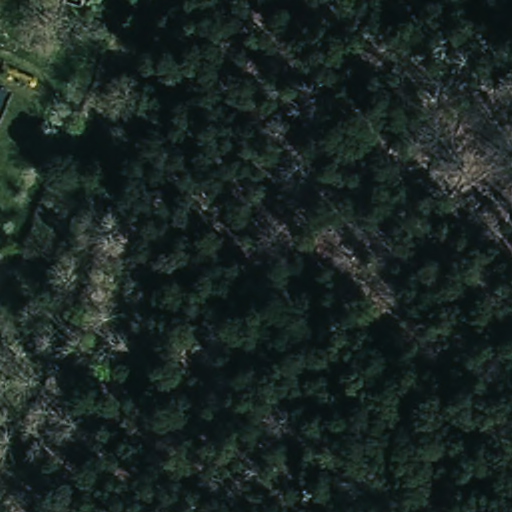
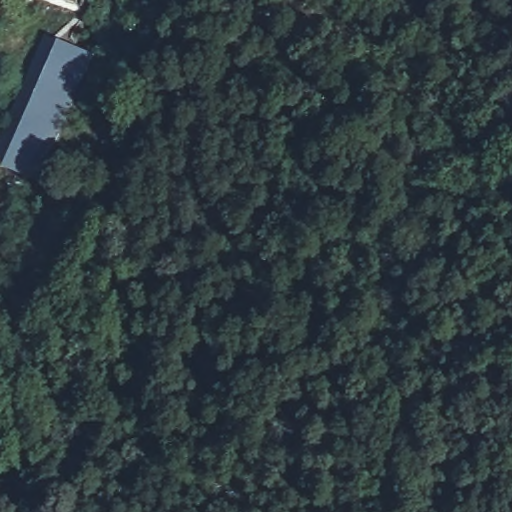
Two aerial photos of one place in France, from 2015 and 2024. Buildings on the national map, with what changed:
new [(0,162),(0,134),(44,31),(94,53),(40,179),(0,162)]

